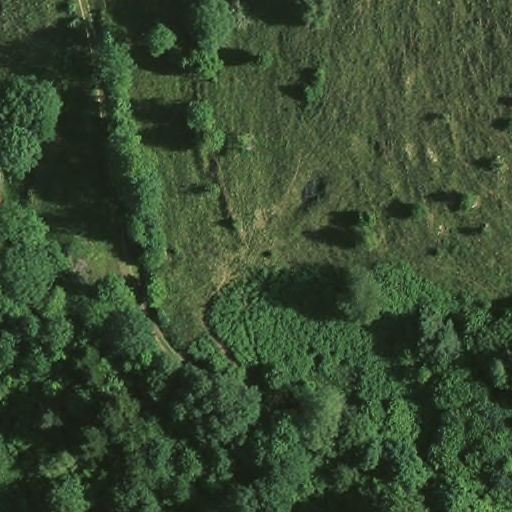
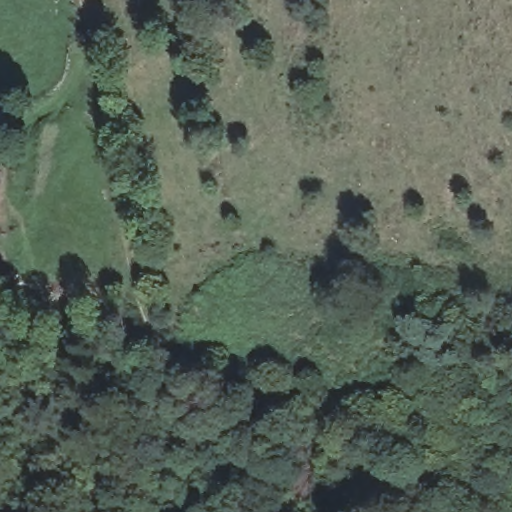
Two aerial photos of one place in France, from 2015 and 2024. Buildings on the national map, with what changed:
unchanged [(0,146),(0,108),(7,109),(0,146)]
unchanged [(0,202),(0,171),(5,171),(0,202)]

